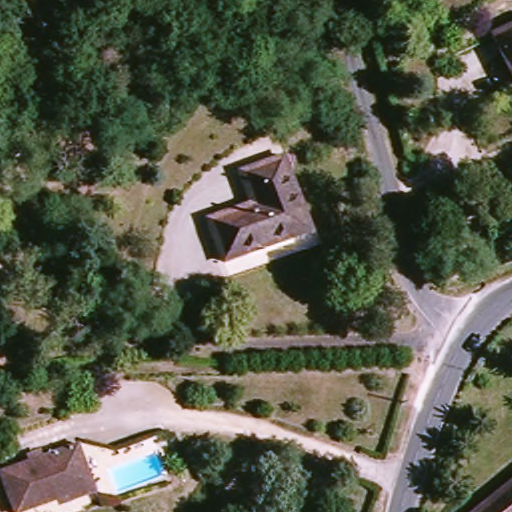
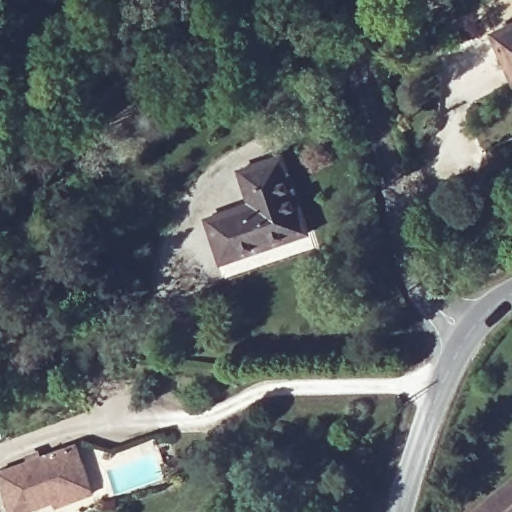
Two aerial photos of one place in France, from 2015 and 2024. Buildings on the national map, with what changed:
unchanged [(496,36),(512,29),(512,69),(496,36)]
unchanged [(312,235),(226,269),(209,221),(253,203),(237,161),(277,145),(312,235)]
unchanged [(55,495),(55,501),(29,512),(15,512),(1,472),(75,445),(90,483),(55,495)]
unchanged [(476,512),(512,483),(512,512),(476,512)]

